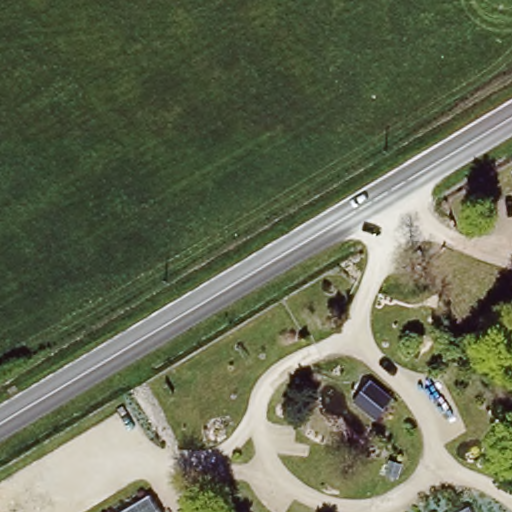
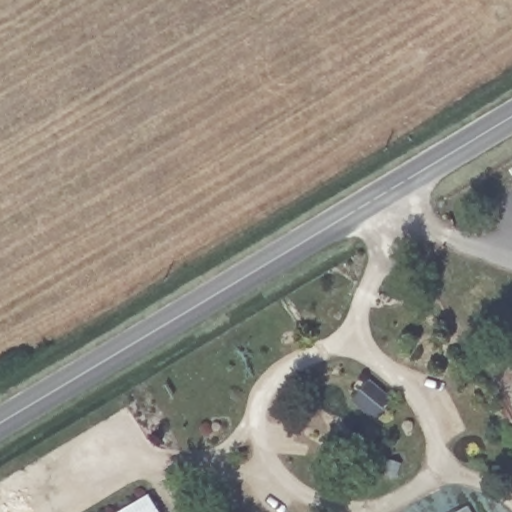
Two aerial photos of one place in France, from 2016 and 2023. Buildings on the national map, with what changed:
unchanged [(160,512),(116,512),(148,493),(160,512)]
unchanged [(464,497),(472,512),(450,512),(447,506),(464,497)]

